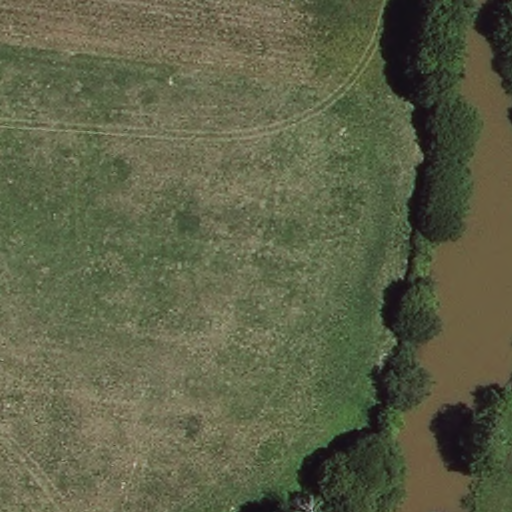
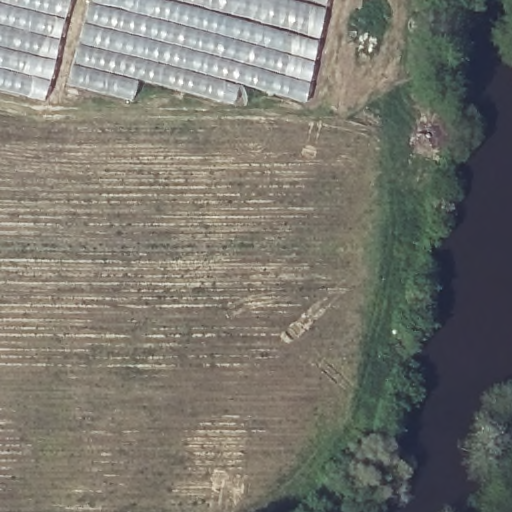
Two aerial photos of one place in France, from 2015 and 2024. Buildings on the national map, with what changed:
demolished [(0,0),(326,0),(316,83),(0,34),(0,0)]
new [(88,0),(166,0),(319,40),(305,103),(242,86),(237,105),(140,81),(132,102),(66,85),(88,0)]
new [(326,6),(319,40),(166,0),(302,0),(326,6)]
new [(326,6),(302,0),(327,0),(326,6)]

